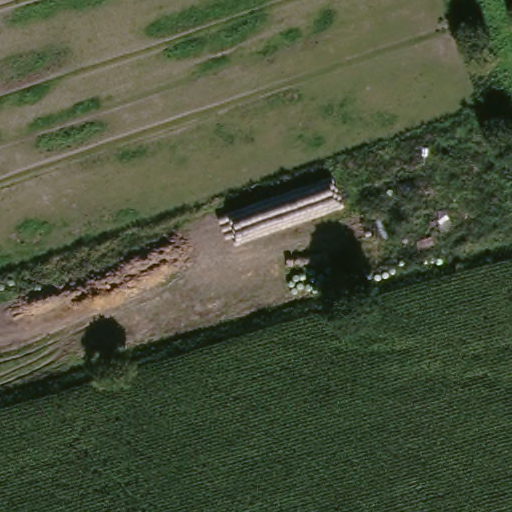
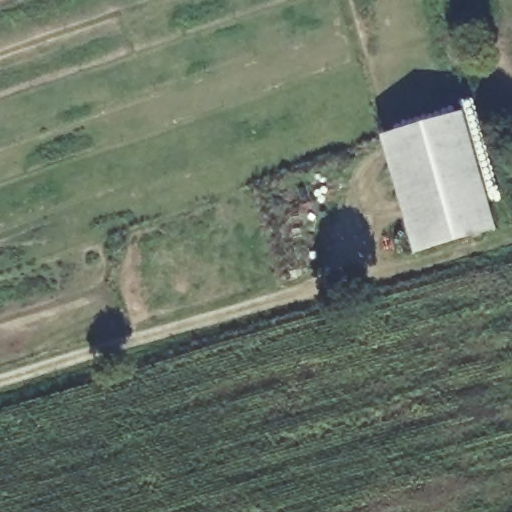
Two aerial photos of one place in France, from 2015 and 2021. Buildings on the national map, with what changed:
new [(461,112),(495,230),(413,254),(380,136),(461,112)]

